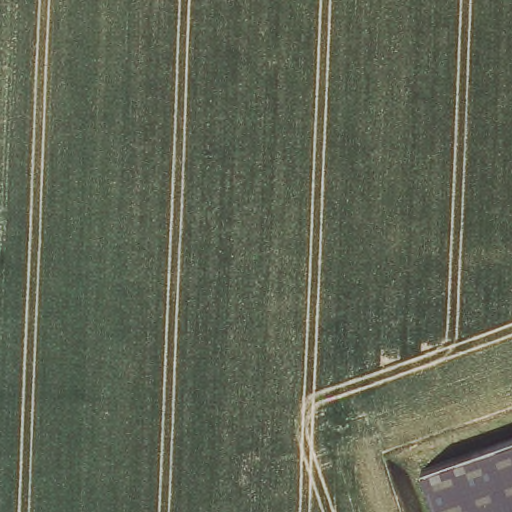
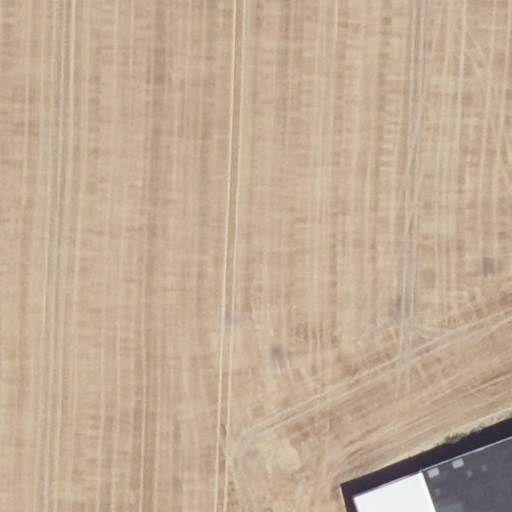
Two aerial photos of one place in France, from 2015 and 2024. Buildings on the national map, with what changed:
unchanged [(426,477),(512,445),(512,512),(439,512),(426,477)]
new [(356,502),(426,477),(439,512),(359,512),(356,502)]

